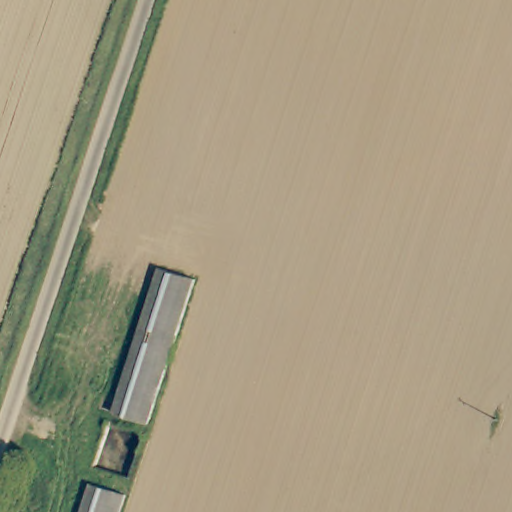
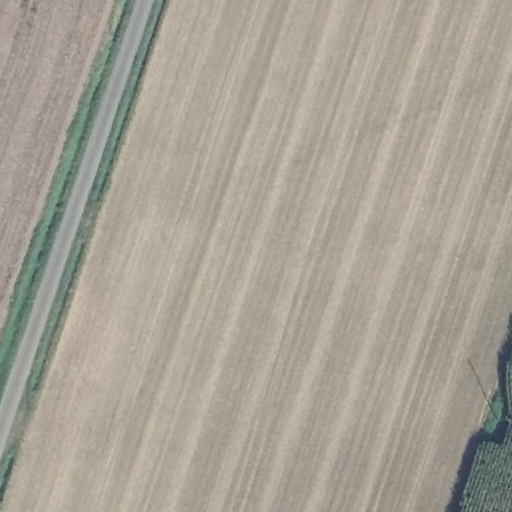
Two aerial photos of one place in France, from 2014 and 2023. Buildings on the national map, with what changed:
demolished [(191,280),(143,423),(111,413),(155,269),(191,280)]
demolished [(127,490),(120,512),(85,512),(95,481),(127,490)]

